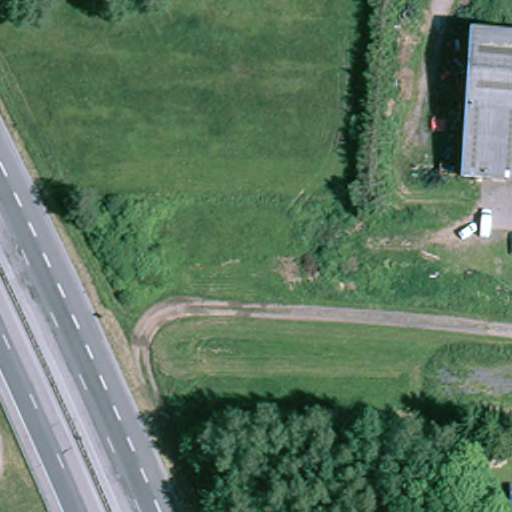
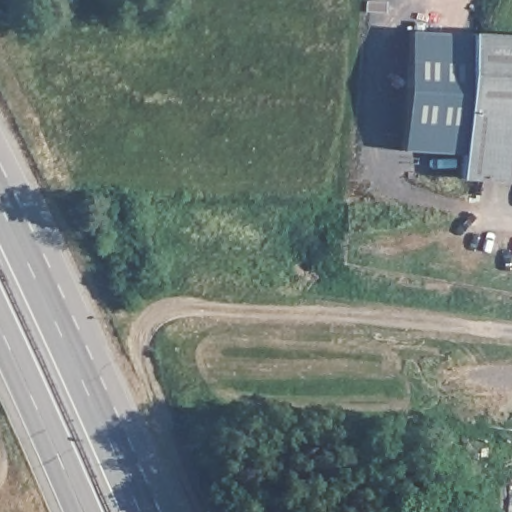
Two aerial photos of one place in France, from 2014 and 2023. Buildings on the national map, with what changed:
new [(467,153),(402,149),(408,31),(473,39),(467,153)]
unchanged [(466,180),(473,39),(512,41),(512,183),(466,180)]

